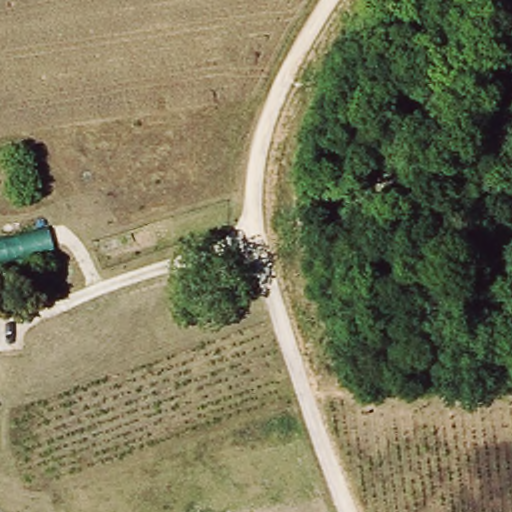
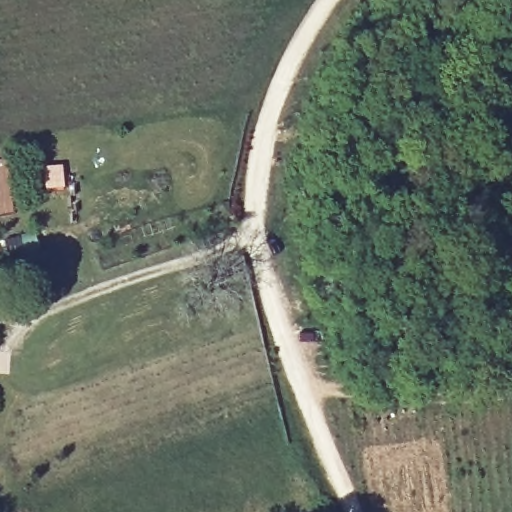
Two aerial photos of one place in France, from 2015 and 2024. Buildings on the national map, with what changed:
new [(6,159),(12,208),(0,209),(0,160),(6,159)]

